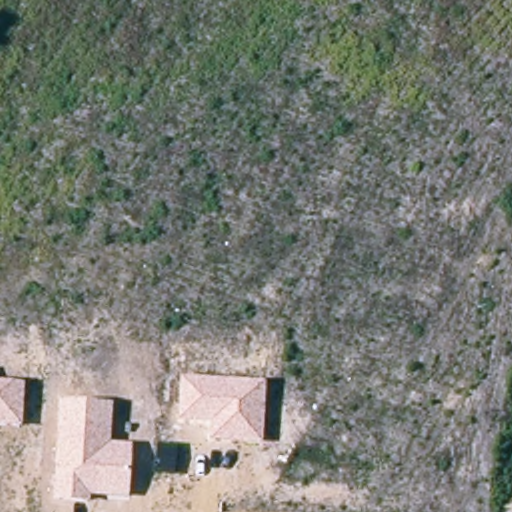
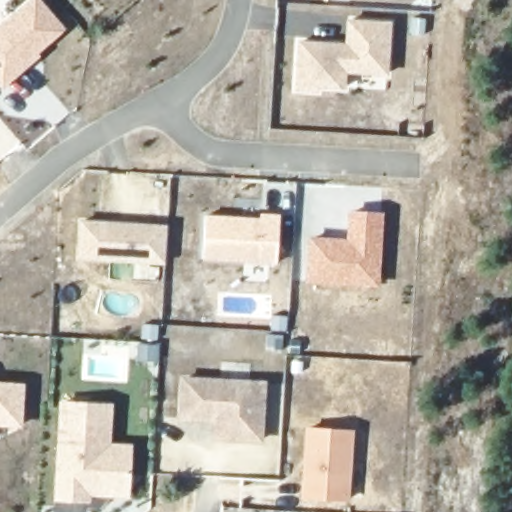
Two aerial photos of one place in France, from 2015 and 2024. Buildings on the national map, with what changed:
new [(28,0),(40,0),(67,30),(37,53),(40,55),(2,90),(0,88),(0,25),(28,0)]
new [(319,94),(296,92),(298,40),(346,43),(347,19),(393,22),(390,74),(347,72),(346,89),(320,86),(319,94)]
new [(307,236),(345,238),(347,210),(384,211),(380,288),(304,285),(307,236)]
new [(260,217),(260,213),(278,214),(275,263),(202,260),(205,214),(260,217)]
new [(167,225),(166,265),(78,259),(79,220),(167,225)]
unchanged [(266,379),(262,442),(210,438),(210,420),(179,418),(180,374),(266,379)]
unchanged [(25,382),(23,427),(0,426),(0,380),(25,382)]
unchanged [(112,402),(111,440),(132,441),(129,496),(91,495),(90,501),(54,498),(58,398),(112,402)]
new [(305,426),(354,429),(350,502),(301,498),(305,426)]

